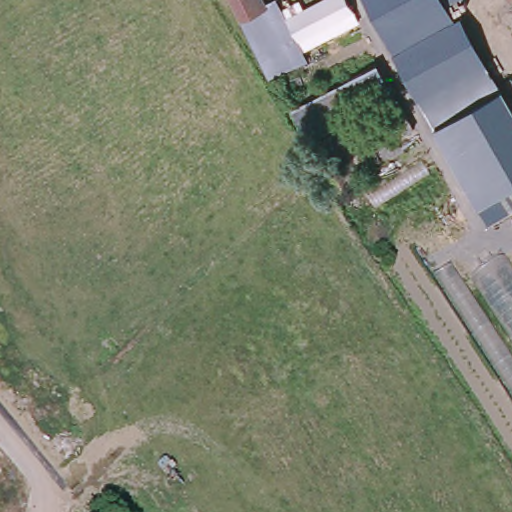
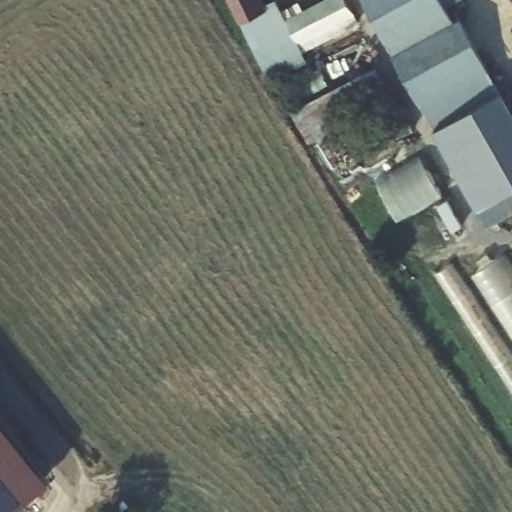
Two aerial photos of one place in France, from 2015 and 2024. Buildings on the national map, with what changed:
unchanged [(295,65),(267,79),(230,0),(274,0),(286,22),(331,0),(347,0),(355,15),(359,25),(291,58),(295,65)]
unchanged [(450,0),(484,64),(417,99),(365,0),(450,0)]
unchanged [(503,92),(512,108),(512,211),(487,225),(478,207),(434,129),(417,99),(484,64),(503,92)]
unchanged [(380,109),(310,149),(291,118),(378,70),(416,135),(401,144),(380,109)]
new [(419,155),(442,197),(397,223),(375,180),(419,155)]
unchanged [(512,264),(512,394),(435,276),(452,263),(464,281),(506,255),(512,264)]
new [(10,512),(0,512),(0,416),(51,479),(10,512)]

